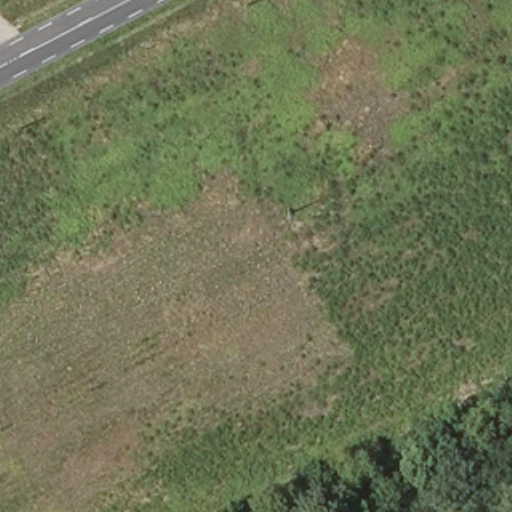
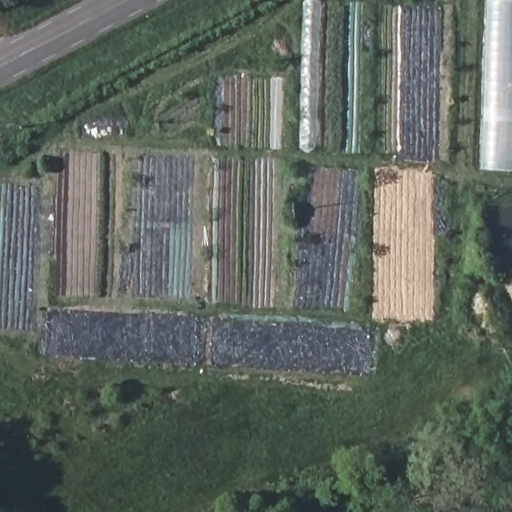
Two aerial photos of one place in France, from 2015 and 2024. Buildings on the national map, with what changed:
new [(481,168),(486,0),(512,0),(512,170),(481,168)]

